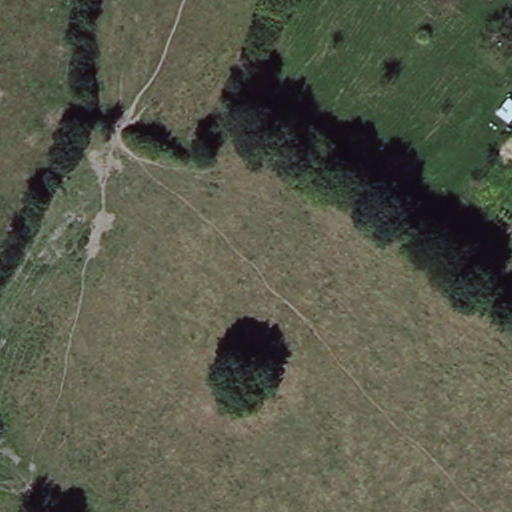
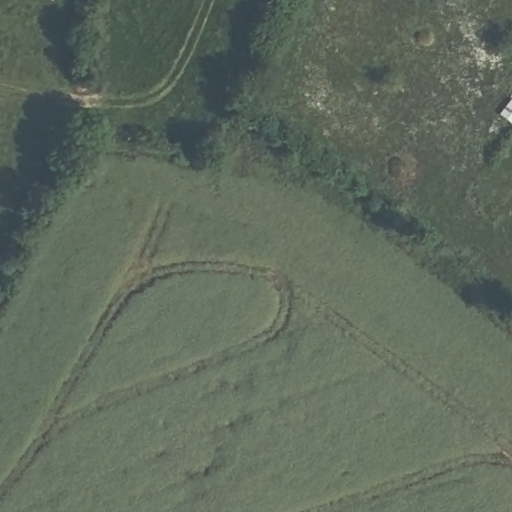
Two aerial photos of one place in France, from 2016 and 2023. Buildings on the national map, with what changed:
unchanged [(512,97),(512,119),(510,121),(498,112),(511,97),(512,97)]

